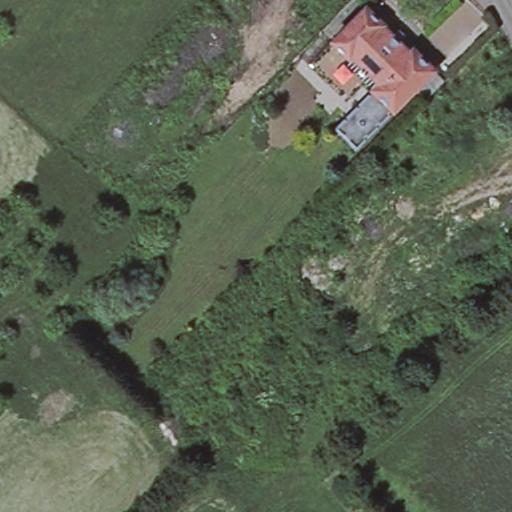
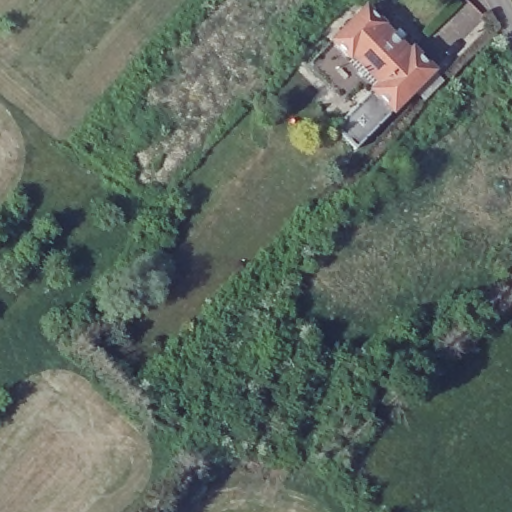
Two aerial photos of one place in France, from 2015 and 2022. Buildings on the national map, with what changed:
unchanged [(414,46),(435,66),(395,107),(373,86),(379,81),(345,49),(334,39),(367,5),(377,16),(410,49),(414,46)]
unchanged [(395,107),(357,146),(335,125),(373,86),(395,107)]

